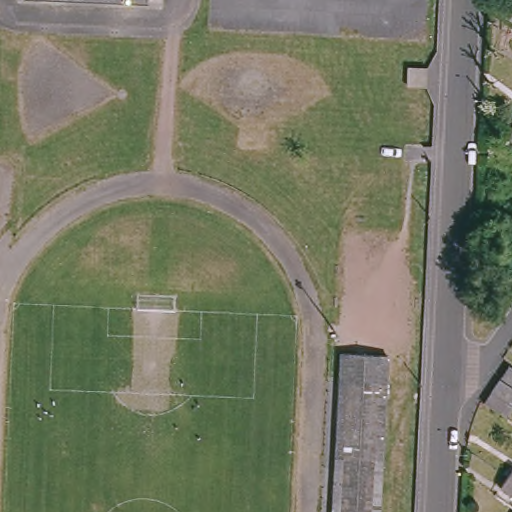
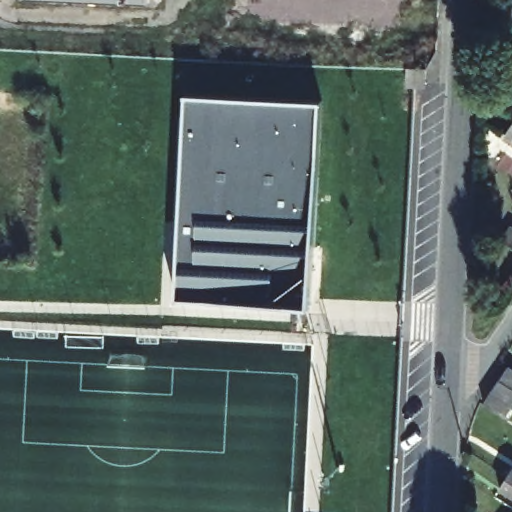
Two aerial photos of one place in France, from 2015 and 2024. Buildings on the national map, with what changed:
unchanged [(110,0),(149,0),(149,1),(110,0)]
unchanged [(512,24),(497,14),(505,0),(512,5),(512,24)]
unchanged [(409,67),(425,68),(424,86),(408,85),(409,67)]
new [(303,315),(176,306),(183,101),(314,109),(303,315)]
unchanged [(512,121),(512,138),(505,132),(512,121)]
unchanged [(512,226),(512,244),(500,236),(508,224),(512,226)]
unchanged [(508,366),(510,363),(512,365),(512,381),(502,375),(504,372),(508,366)]
demolished [(330,481),(333,415),(336,366),(383,368),(380,410),(377,467),(375,512),(328,512),(330,481)]
unchanged [(500,377),(512,385),(512,407),(505,417),(484,403),(500,377)]
unchanged [(512,462),(512,477),(500,470),(507,460),(512,462)]
unchanged [(500,470),(512,477),(512,491),(495,479),(500,470)]

